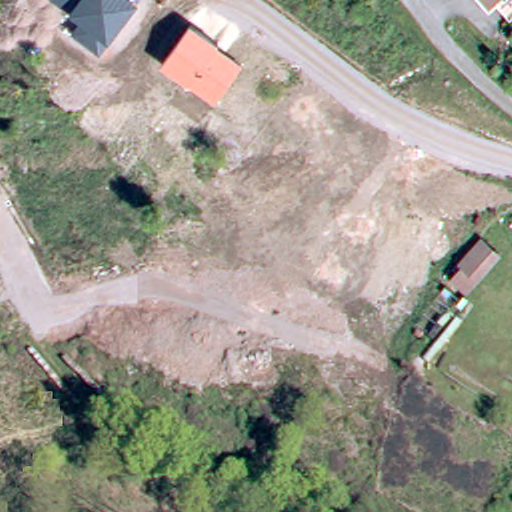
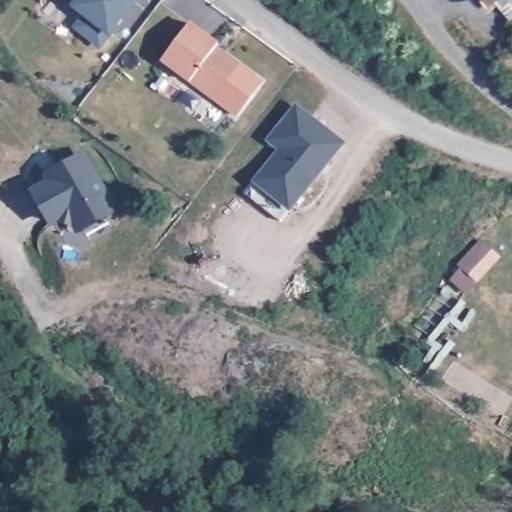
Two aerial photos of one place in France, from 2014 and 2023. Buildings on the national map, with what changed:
unchanged [(71,27),(80,15),(59,0),(141,0),(102,51),(71,27)]
unchanged [(489,0),(506,0),(497,9),(489,0)]
unchanged [(246,60),(217,102),(162,64),(192,24),(246,60)]
new [(283,146),(271,136),(297,103),(342,139),(291,204),(281,217),(248,190),(258,179),(283,146)]
new [(85,150),(119,210),(77,234),(73,226),(58,222),(50,225),(32,189),(47,181),(42,174),(85,150)]
unchanged [(477,239),(493,253),(475,275),(460,261),(477,239)]

